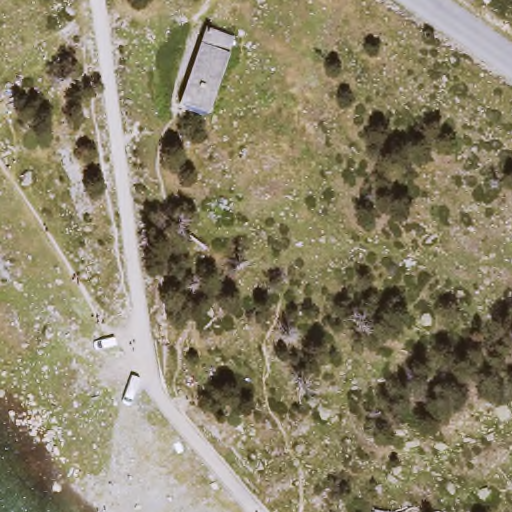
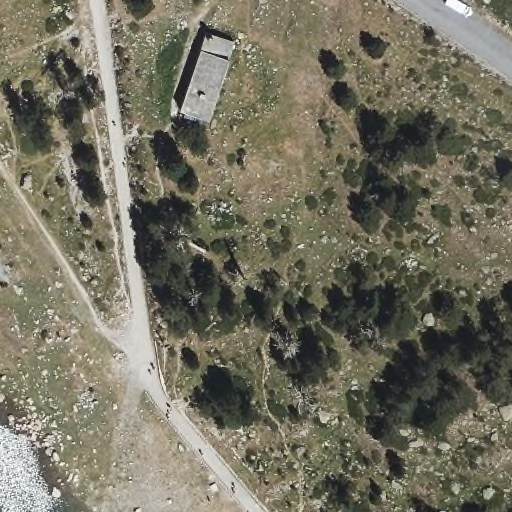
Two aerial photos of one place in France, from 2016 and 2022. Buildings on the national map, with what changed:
unchanged [(237,37),(209,116),(179,105),(191,69),(205,28),(237,37)]

